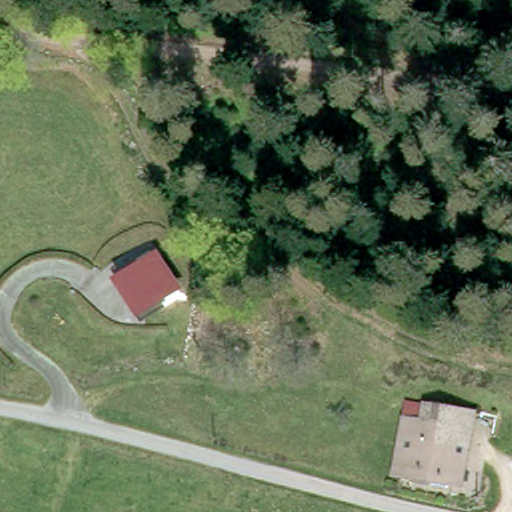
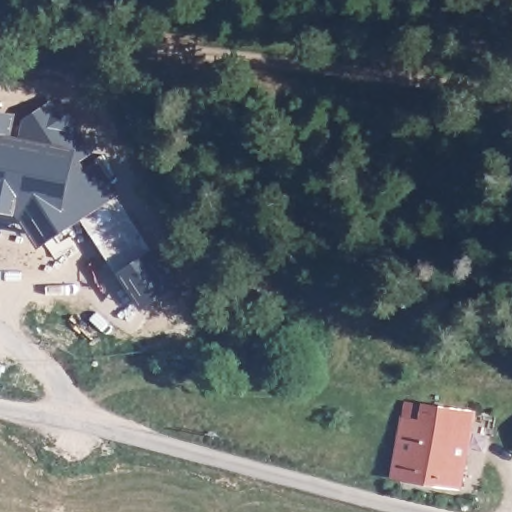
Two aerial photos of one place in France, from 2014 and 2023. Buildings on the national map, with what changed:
new [(19,114),(15,136),(20,137),(23,120),(55,99),(59,103),(61,102),(74,123),(72,124),(91,151),(77,161),(83,172),(98,162),(118,193),(113,197),(80,218),(40,245),(17,211),(0,208),(0,111),(19,114)]
new [(113,197),(150,250),(116,272),(80,218),(113,197)]
unchanged [(174,294),(137,311),(120,278),(158,260),(174,294)]
unchanged [(414,411),(449,415),(450,410),(474,414),(464,489),(393,479),(403,422),(412,424),(414,411)]

